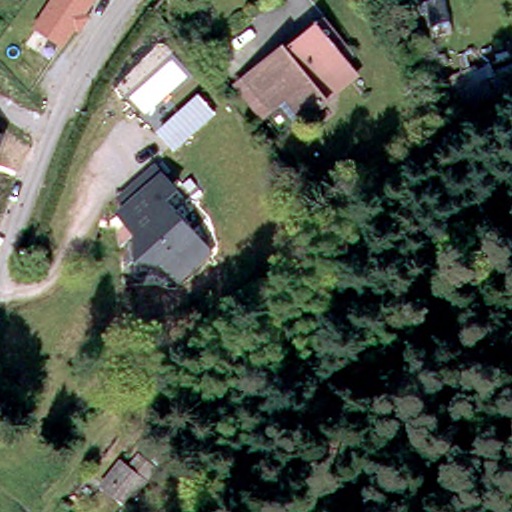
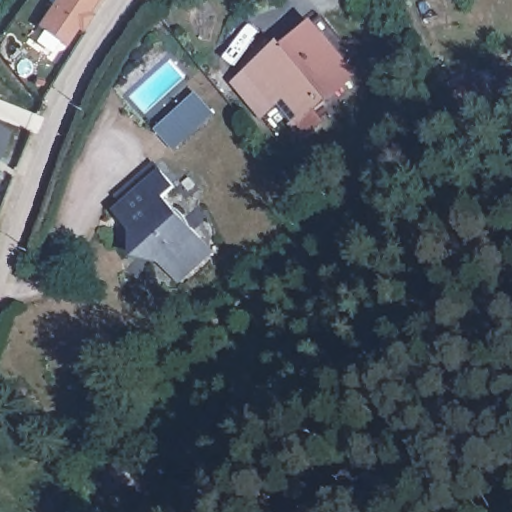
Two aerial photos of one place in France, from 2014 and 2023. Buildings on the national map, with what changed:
unchanged [(35,25),(51,0),(96,0),(64,46),(35,25)]
unchanged [(238,79),(255,64),(283,40),(292,50),(320,25),(345,54),(355,66),(326,90),(298,114),(280,95),(265,109),(238,79)]
unchanged [(495,115),(460,128),(454,115),(488,100),(495,115)]
unchanged [(202,115),(216,130),(179,164),(165,150),(202,115)]
unchanged [(0,148),(0,131),(5,134),(0,148)]
unchanged [(166,277),(158,277),(143,272),(140,256),(141,249),(130,236),(123,229),(131,222),(123,214),(161,180),(182,205),(171,215),(204,252),(217,267),(183,297),(170,282),(166,277)]
unchanged [(121,457),(123,459),(133,447),(148,460),(120,495),(103,482),(101,480),(108,472),(121,457)]

